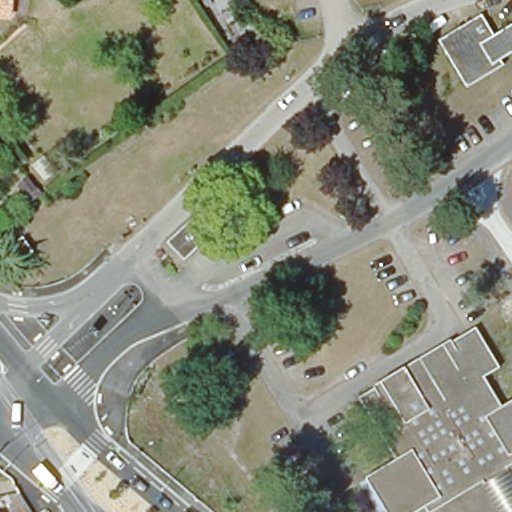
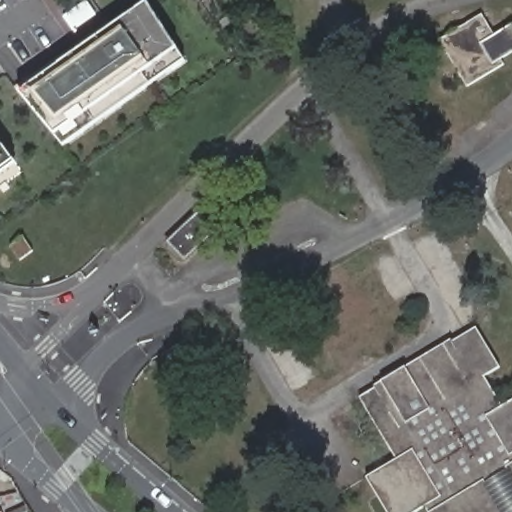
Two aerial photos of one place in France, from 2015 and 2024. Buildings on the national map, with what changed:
demolished [(0,6),(0,0),(1,0),(0,6)]
new [(19,91),(146,1),(176,49),(184,61),(65,146),(55,134),(19,91)]
unchanged [(481,14),(495,36),(512,25),(512,53),(503,59),(506,63),(469,86),(440,40),(481,14)]
new [(15,162),(0,173),(0,140),(15,162)]
demolished [(41,157),(50,174),(31,184),(22,168),(41,157)]
unchanged [(184,245),(201,229),(210,221),(221,234),(214,241),(196,258),(184,245)]
unchanged [(24,255),(5,265),(0,255),(0,242),(15,235),(24,255)]
unchanged [(410,512),(406,512),(378,467),(391,458),(353,396),(372,385),(446,339),(470,325),(495,366),(480,375),(498,404),(506,400),(512,396),(512,480),(503,465),(481,478),(499,509),(501,512),(424,512),(420,506),(410,512)]
unchanged [(378,467),(406,512),(384,512),(361,477),(378,467)]

